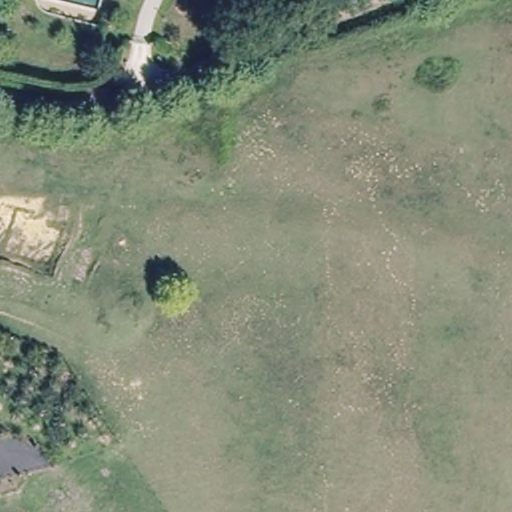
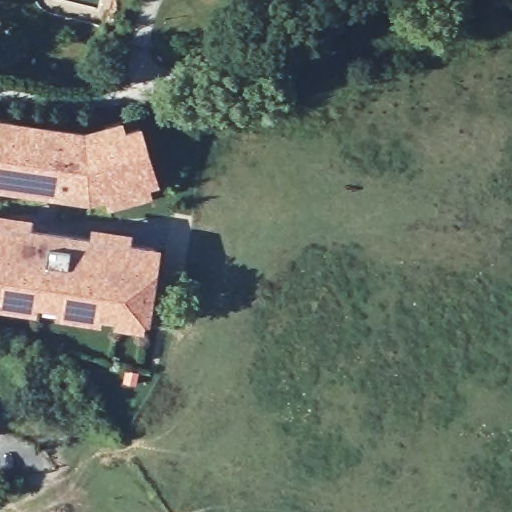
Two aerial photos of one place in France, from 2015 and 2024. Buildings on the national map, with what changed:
unchanged [(113,17),(107,33),(99,30),(104,15),(113,17)]
new [(154,196),(109,208),(107,197),(84,197),(83,201),(0,189),(0,114),(85,126),(123,115),(126,125),(143,121),(160,182),(150,184),(154,196)]
new [(31,223),(90,232),(91,222),(132,229),(131,238),(159,243),(146,328),(114,323),(115,314),(102,312),(100,321),(56,314),(58,303),(39,301),(36,311),(0,306),(0,208),(34,213),(31,223)]

